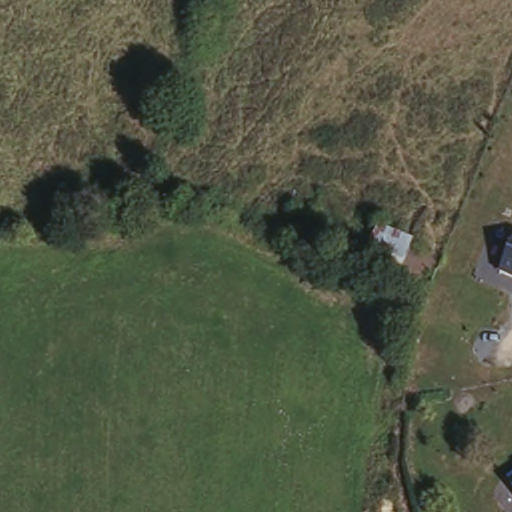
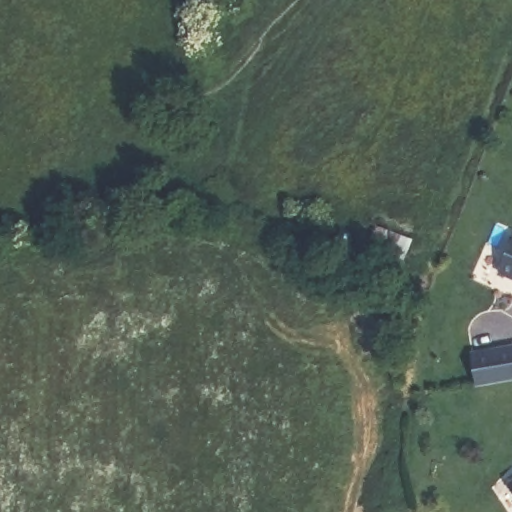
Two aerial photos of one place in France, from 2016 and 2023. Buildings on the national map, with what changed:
unchanged [(278,233),(289,214),(310,220),(315,207),(410,244),(395,281),(278,233)]
unchanged [(512,244),(512,280),(499,274),(512,244)]
new [(512,349),(512,381),(503,382),(485,386),(480,355),(497,352),(512,349)]
unchanged [(512,490),(512,492),(511,491),(512,490)]

